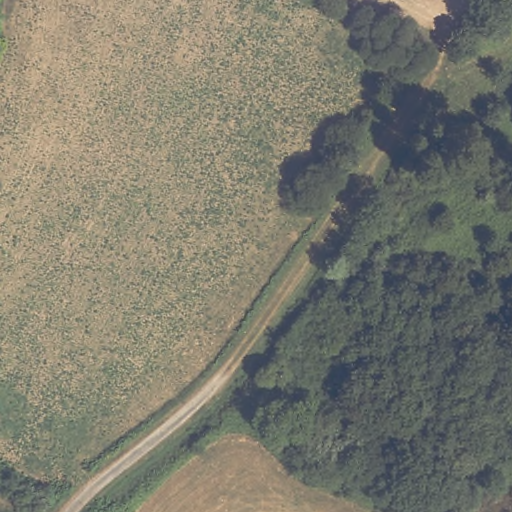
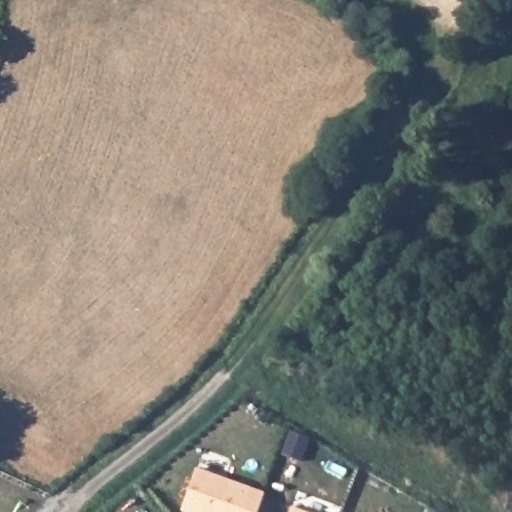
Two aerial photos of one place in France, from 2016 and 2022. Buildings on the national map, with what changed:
new [(265,492),(259,512),(182,512),(198,468),(265,492)]
new [(308,512),(291,512),(293,507),(308,512)]

